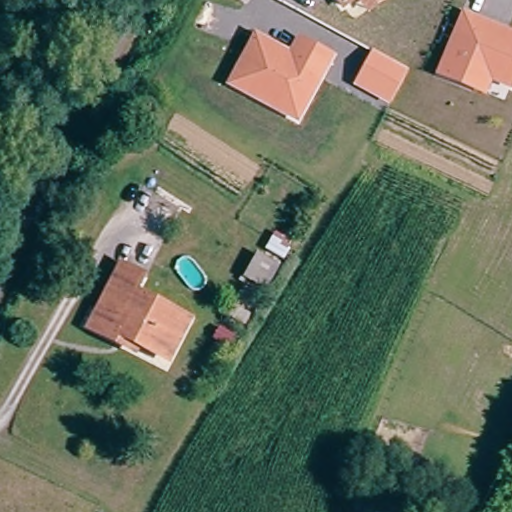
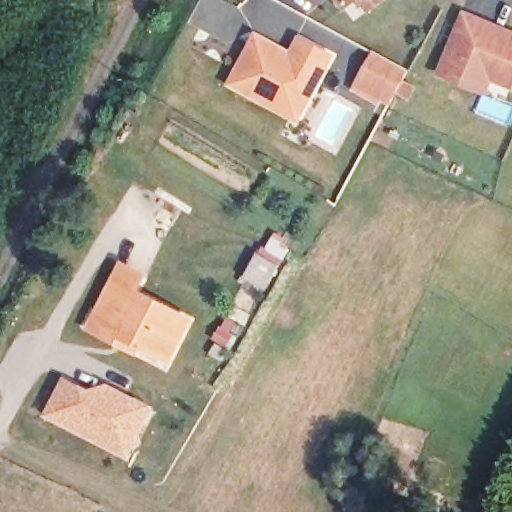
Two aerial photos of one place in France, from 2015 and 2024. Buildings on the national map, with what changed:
unchanged [(342,9),(335,0),(355,0),(342,9)]
unchanged [(368,15),(356,0),(386,0),(368,15)]
unchanged [(512,89),(492,82),(486,96),(435,74),(463,10),(512,30),(512,89)]
unchanged [(289,49),(297,34),(333,53),(298,122),(226,85),(254,31),(289,49)]
unchanged [(407,69),(389,105),(353,85),(372,50),(407,69)]
unchanged [(266,292),(245,279),(259,254),(281,267),(266,292)]
unchanged [(116,337),(97,328),(87,323),(97,306),(121,259),(144,271),(137,283),(186,310),(162,355),(140,342),(137,349),(116,337)]
new [(91,391),(104,384),(155,408),(128,460),(44,417),(65,380),(91,391)]

